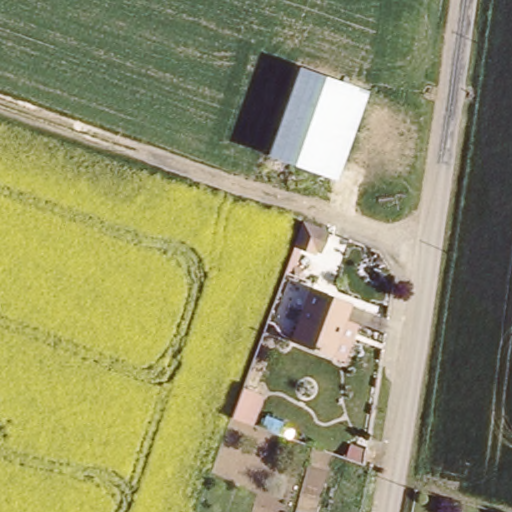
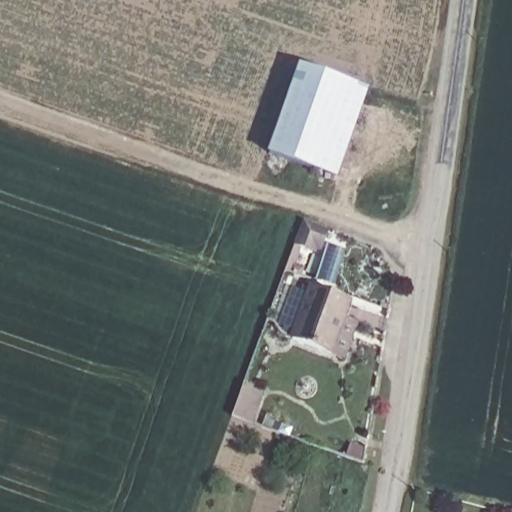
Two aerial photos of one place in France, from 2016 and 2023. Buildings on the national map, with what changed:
unchanged [(300,71),(365,94),(337,183),(268,159),(300,71)]
unchanged [(329,229),(324,244),(312,240),(308,250),(294,246),(303,221),(329,229)]
unchanged [(350,309),(340,336),(331,363),(292,349),(310,296),(343,307),(350,309)]

